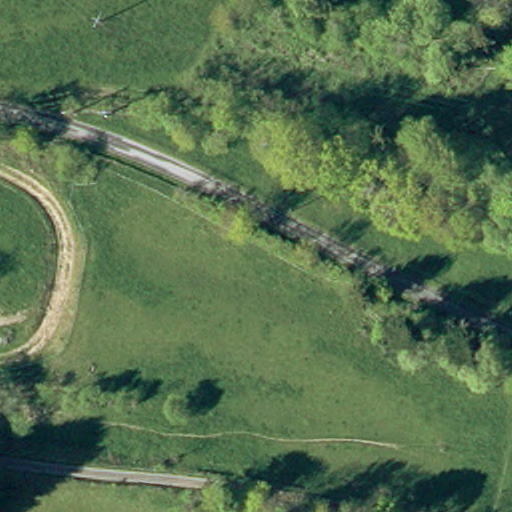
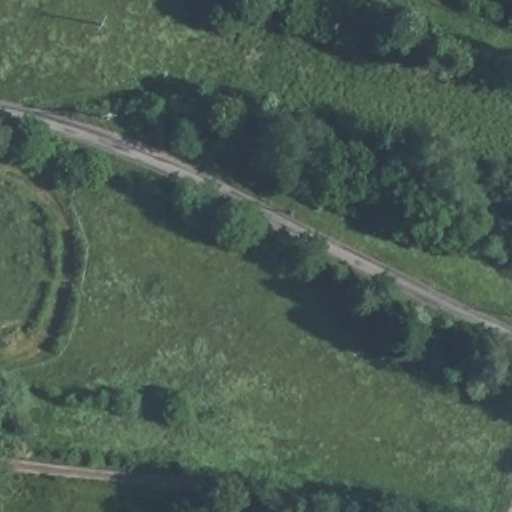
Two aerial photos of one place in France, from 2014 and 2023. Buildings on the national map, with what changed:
[]

